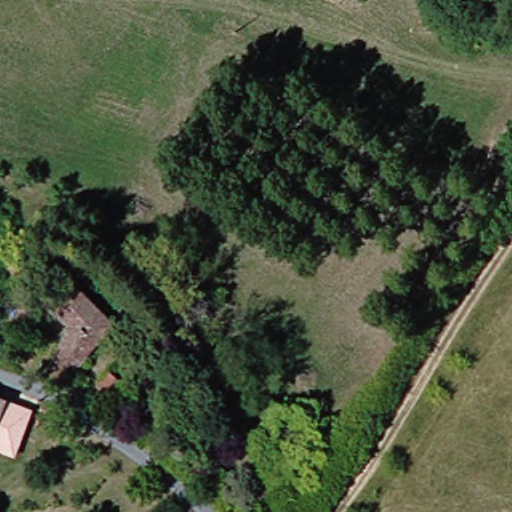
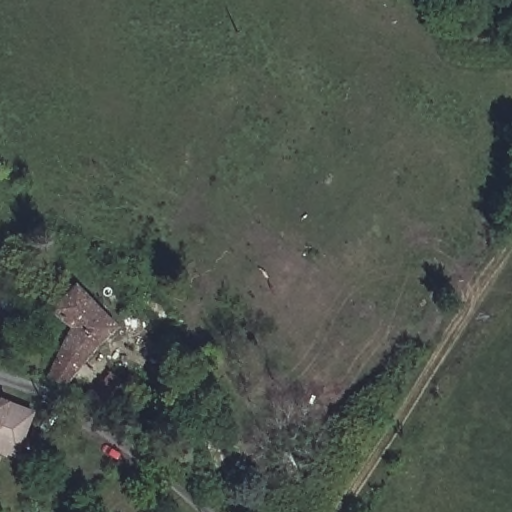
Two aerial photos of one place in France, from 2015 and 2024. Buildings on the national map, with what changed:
unchanged [(512,183),(512,193),(507,189),(512,183)]
unchanged [(104,320),(61,382),(47,377),(55,361),(71,327),(44,306),(66,285),(104,320)]
unchanged [(3,289),(0,293),(0,287),(3,289)]
unchanged [(106,373),(125,388),(106,412),(86,397),(106,373)]
unchanged [(3,400),(29,408),(12,456),(0,451),(0,399),(3,400)]
unchanged [(272,494),(278,512),(258,512),(255,500),(272,494)]

